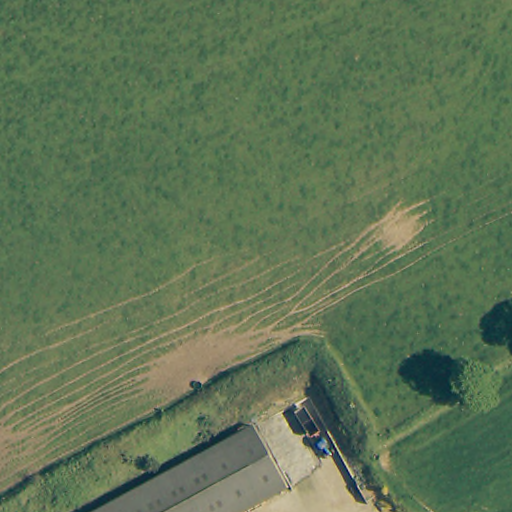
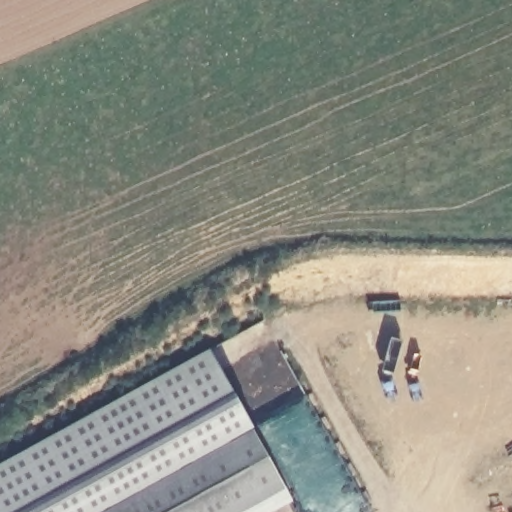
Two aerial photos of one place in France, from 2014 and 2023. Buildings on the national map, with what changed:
new [(247,427),(207,448),(146,481),(87,512),(0,512),(0,463),(210,350),(247,427)]
unchanged [(279,490),(237,512),(87,512),(146,481),(207,448),(247,427),(279,490)]

